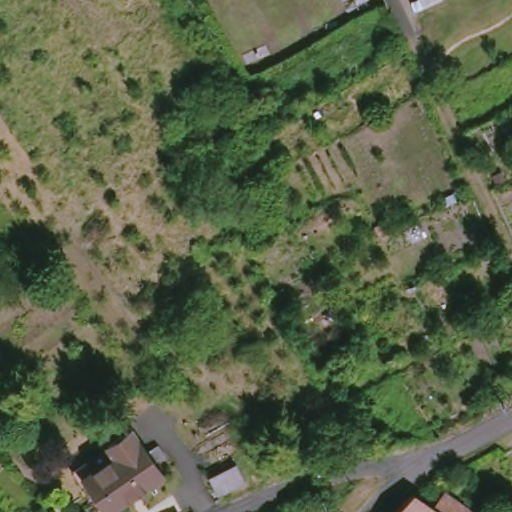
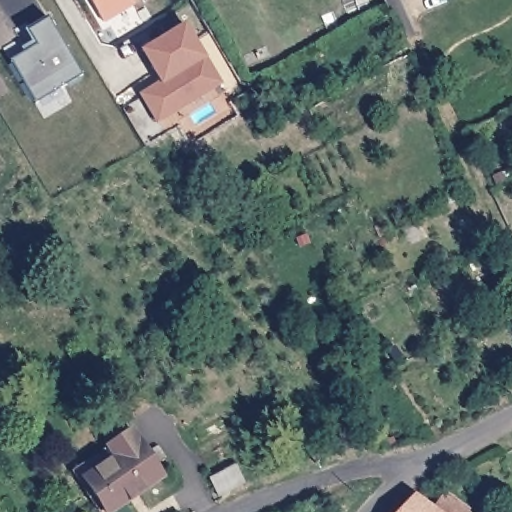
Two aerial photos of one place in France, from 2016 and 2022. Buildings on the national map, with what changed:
new [(133,1),(137,4),(105,22),(91,0),(134,0),(133,1)]
new [(82,75),(36,102),(10,62),(37,45),(29,30),(48,18),(82,75)]
new [(207,57),(223,84),(159,124),(140,93),(160,82),(142,50),(186,22),(207,57)]
unchanged [(102,512),(77,481),(106,459),(100,452),(127,433),(162,477),(116,512),(102,512)]
unchanged [(232,464),(242,482),(225,491),(215,496),(205,479),(215,474),(232,464)]
unchanged [(463,509),(461,512),(434,512),(427,507),(430,505),(439,492),(463,509)]
unchanged [(431,512),(390,512),(407,494),(431,512)]
unchanged [(482,512),(487,505),(491,512),(482,512)]

